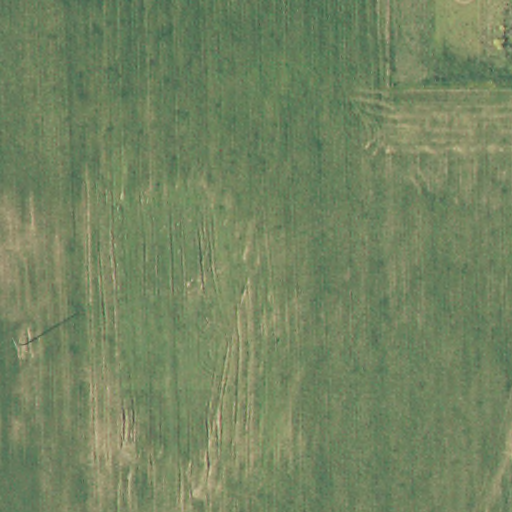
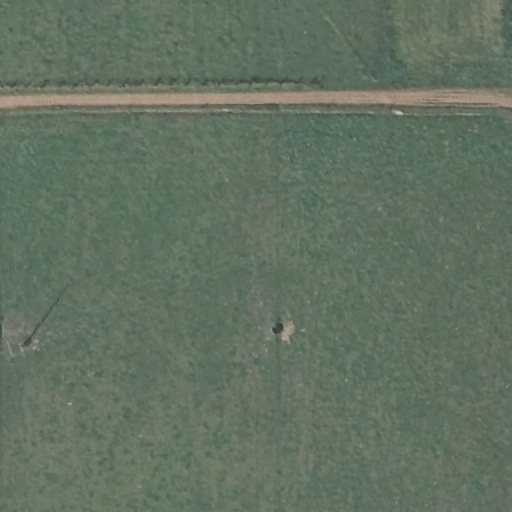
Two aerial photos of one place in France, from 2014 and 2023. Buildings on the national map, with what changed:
[]

